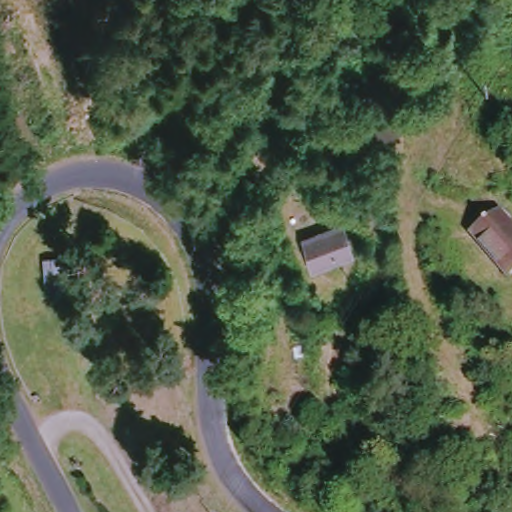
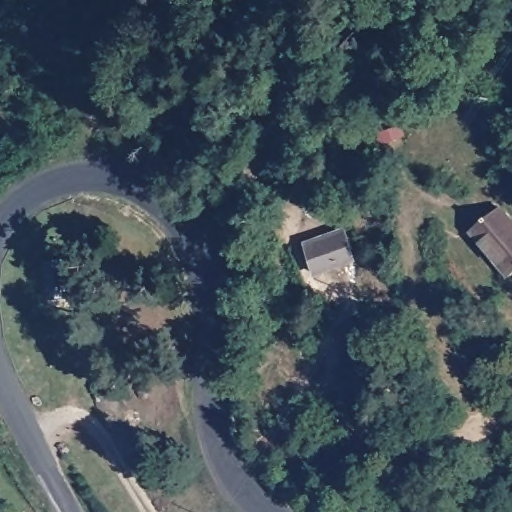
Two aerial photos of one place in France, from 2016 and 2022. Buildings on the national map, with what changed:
unchanged [(465,233),(489,208),(512,231),(512,275),(510,277),(465,233)]
unchanged [(308,274),(301,245),(341,233),(347,264),(308,274)]
unchanged [(65,280),(52,273),(67,240),(80,246),(65,280)]

